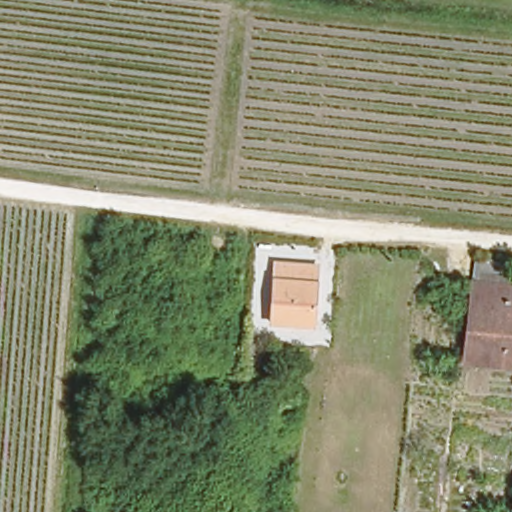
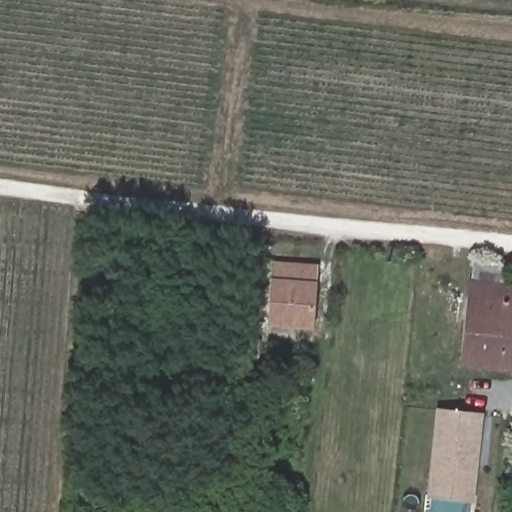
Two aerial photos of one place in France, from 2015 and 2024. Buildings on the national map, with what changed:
unchanged [(312,270),(306,326),(266,321),(272,265),(312,270)]
unchanged [(464,354),(472,272),(512,277),(512,359),(464,354)]
new [(475,501),(432,497),(441,412),(483,417),(479,459),(478,467),(475,501)]

